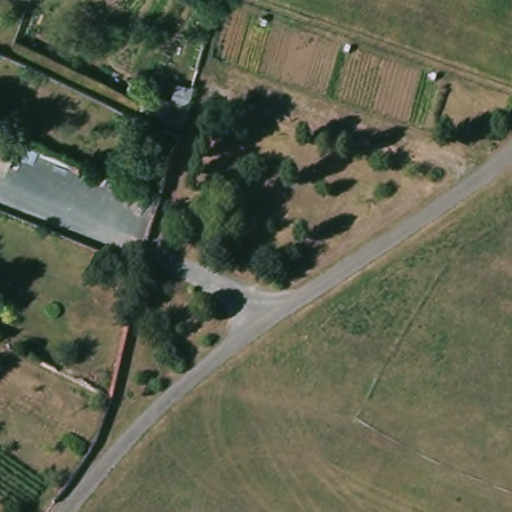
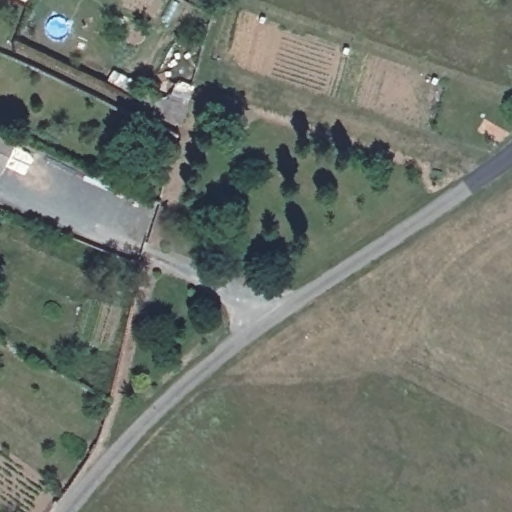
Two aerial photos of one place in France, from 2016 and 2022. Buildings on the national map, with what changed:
unchanged [(3,169),(0,168),(0,129),(17,137),(3,169)]

